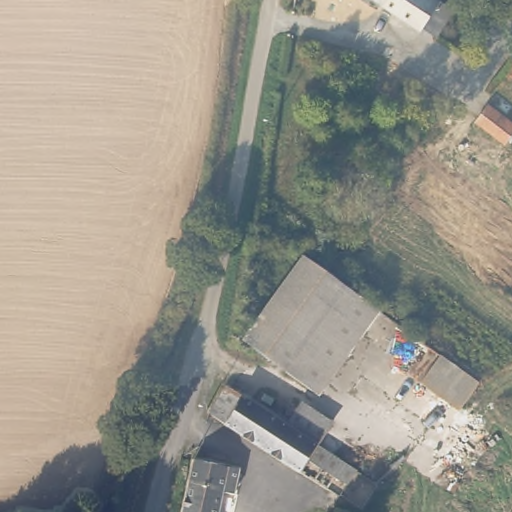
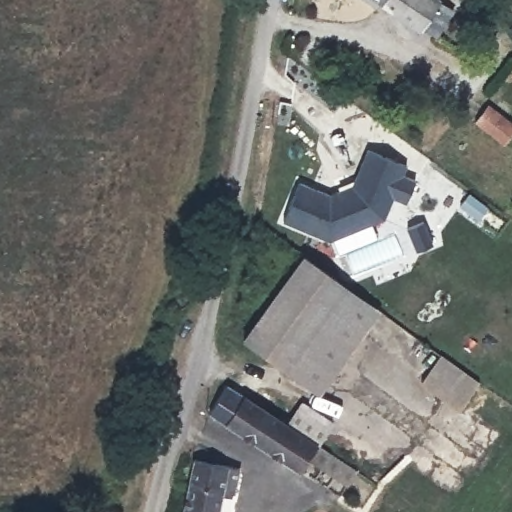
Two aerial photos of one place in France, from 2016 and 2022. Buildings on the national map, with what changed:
unchanged [(309,5),(295,5),(297,0),(310,0),(309,5)]
unchanged [(451,9),(432,38),(376,0),(438,0),(451,9)]
unchanged [(496,93),(512,105),(512,137),(506,144),(472,126),(496,93)]
new [(283,220),(300,181),(330,194),(352,185),(368,147),(407,163),(404,174),(416,177),(406,202),(394,197),(386,217),(371,223),(377,237),(339,252),(334,238),(330,240),(283,220)]
unchanged [(381,312),(318,395),(245,340),(312,256),(381,312)]
unchanged [(441,356),(480,385),(457,411),(418,385),(441,356)]
unchanged [(289,428),(302,408),(333,426),(320,450),(344,465),(335,477),(309,462),(302,473),(208,412),(224,385),(289,428)]
unchanged [(230,468),(222,512),(184,512),(194,461),(230,468)]

